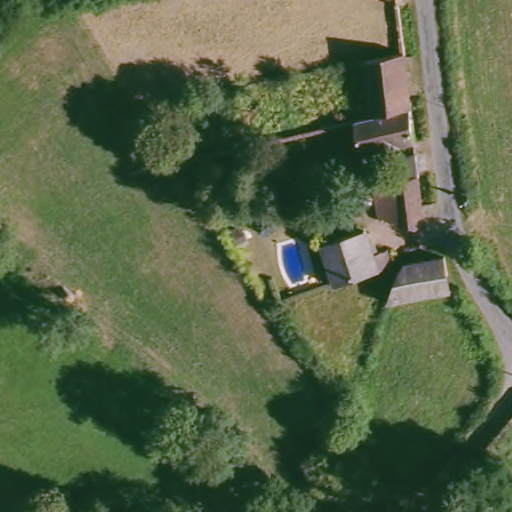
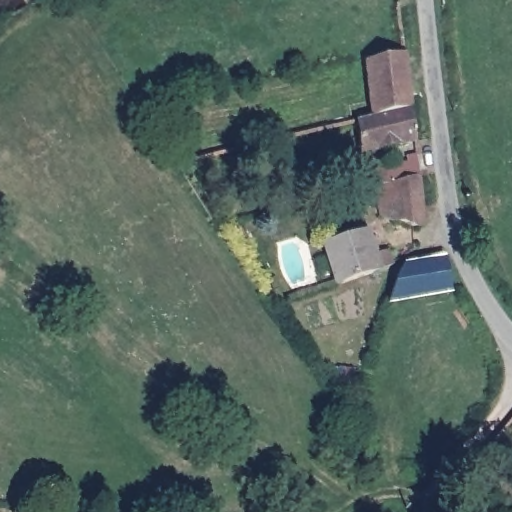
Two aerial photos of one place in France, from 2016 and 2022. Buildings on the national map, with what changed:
unchanged [(403,57),(406,90),(409,110),(371,117),(364,65),(403,57)]
unchanged [(409,110),(413,142),(362,154),(355,121),(371,117),(409,110)]
unchanged [(411,232),(402,229),(391,229),(385,225),(380,195),(373,196),(370,179),(392,173),(414,167),(414,160),(419,160),(422,183),(426,210),(428,225),(421,235),(416,236),(411,232)]
unchanged [(326,244),(369,231),(377,256),(390,253),(396,269),(341,287),(326,244)]
unchanged [(407,267),(448,260),(455,297),(393,304),(407,267)]

